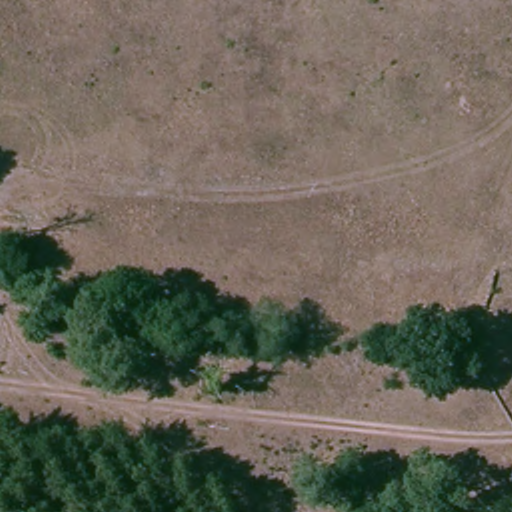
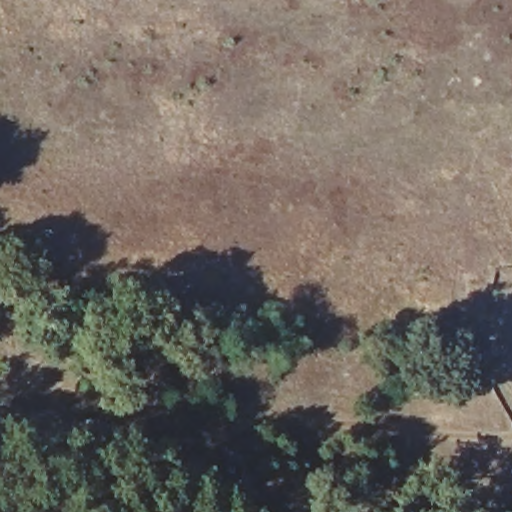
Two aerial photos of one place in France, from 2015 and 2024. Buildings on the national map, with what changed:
[]

